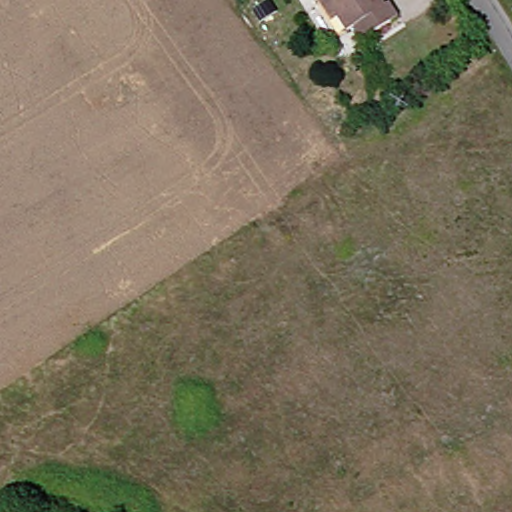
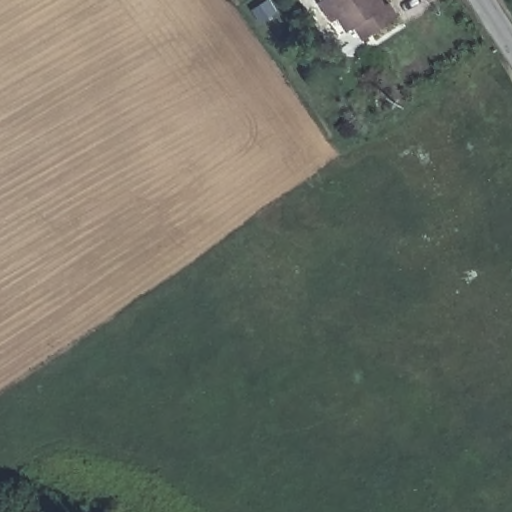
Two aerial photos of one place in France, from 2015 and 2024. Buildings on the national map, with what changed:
unchanged [(312,0),(373,0),(376,5),(382,1),(391,14),(352,41),(343,29),(337,33),(326,17),(323,19),(312,0)]

